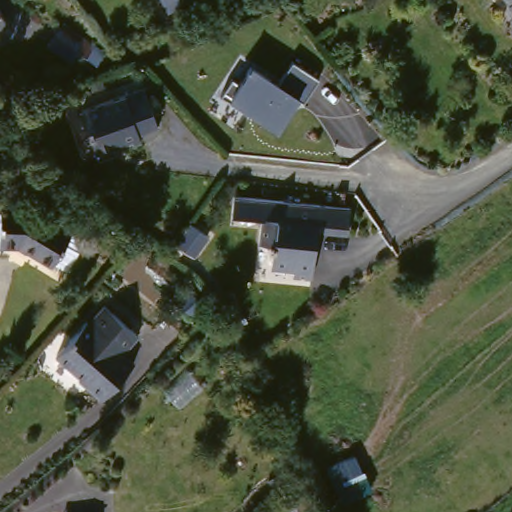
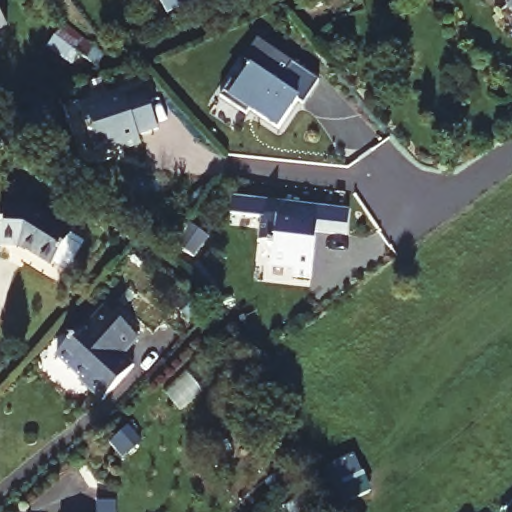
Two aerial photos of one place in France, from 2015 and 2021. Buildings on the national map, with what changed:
unchanged [(166,16),(160,0),(196,0),(197,4),(166,16)]
unchanged [(507,0),(512,0),(512,6),(507,0)]
unchanged [(0,31),(0,18),(5,29),(0,31)]
unchanged [(98,66),(89,61),(79,55),(78,54),(73,62),(71,64),(44,45),(48,40),(59,23),(104,55),(98,66)]
unchanged [(278,84),(292,64),(321,82),(305,105),(297,100),(277,129),(230,99),(248,67),(278,84)]
unchanged [(145,90),(161,129),(143,136),(145,144),(127,151),(125,146),(114,151),(112,148),(100,153),(84,114),(145,90)]
unchanged [(347,236),(323,235),(316,234),(316,240),(314,280),(297,278),(297,270),(277,268),(274,268),(275,251),(273,247),(260,246),(261,222),(289,224),(289,206),(348,210),(348,216),(347,236)]
unchanged [(38,257),(4,251),(5,215),(33,215),(80,240),(59,271),(38,257)]
unchanged [(212,229),(194,261),(176,251),(194,220),(212,229)]
unchanged [(104,306),(138,340),(124,355),(135,363),(99,404),(54,358),(104,306)]
unchanged [(340,506),(321,471),(354,455),(374,492),(340,506)]
unchanged [(65,508),(101,510),(101,512),(65,512),(65,508)]

